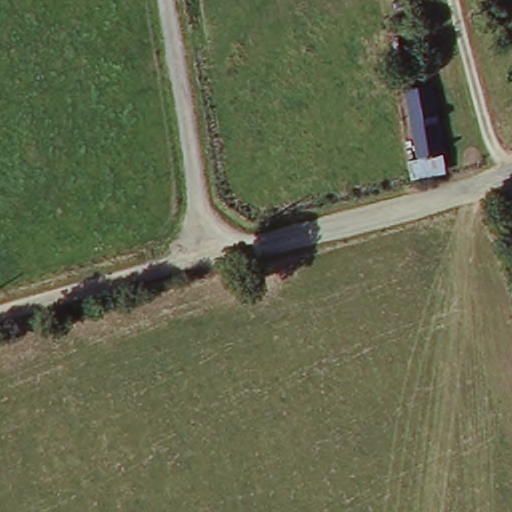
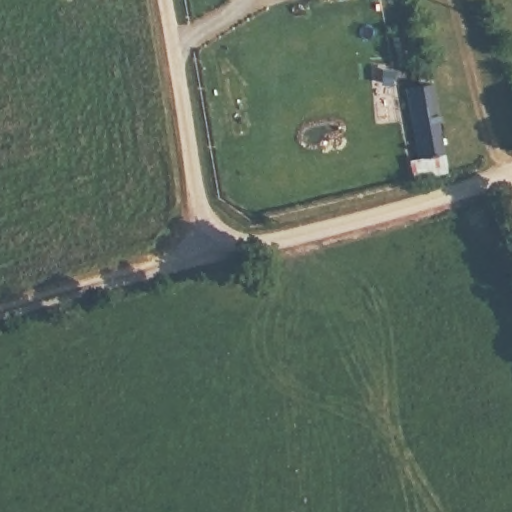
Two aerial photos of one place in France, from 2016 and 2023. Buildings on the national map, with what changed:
unchanged [(411,182),(406,160),(416,158),(401,86),(435,80),(450,172),(411,182)]

